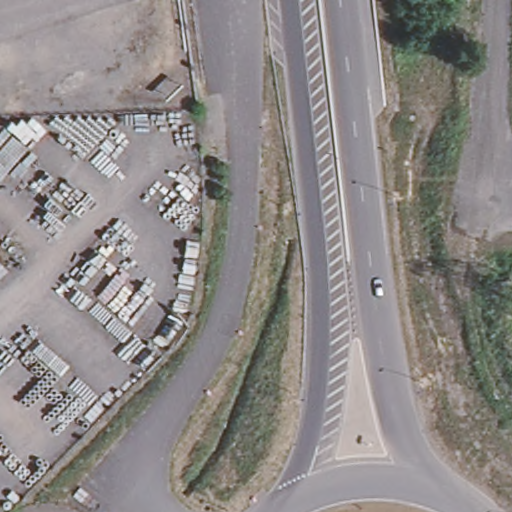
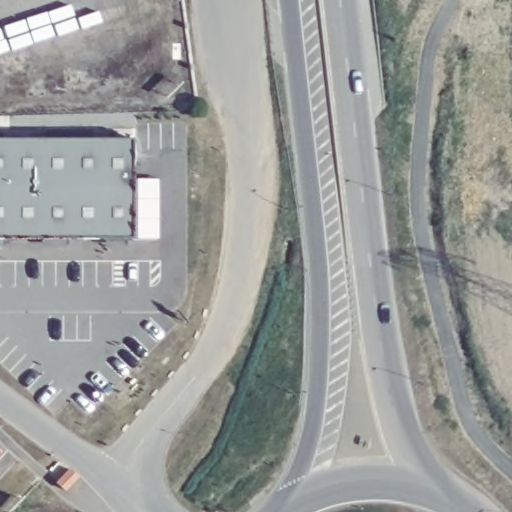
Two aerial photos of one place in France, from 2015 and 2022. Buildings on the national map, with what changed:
new [(130,141),(132,237),(0,237),(0,141),(130,141)]

